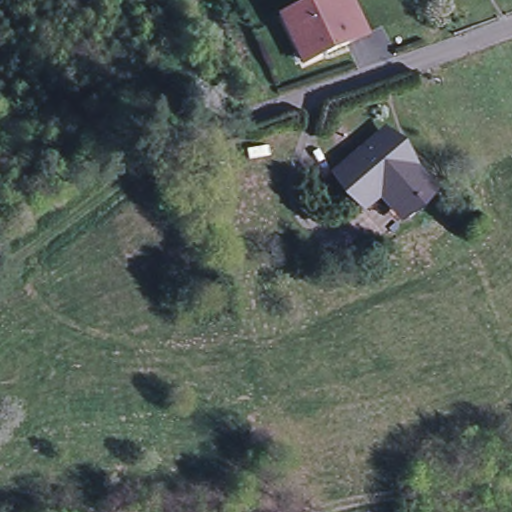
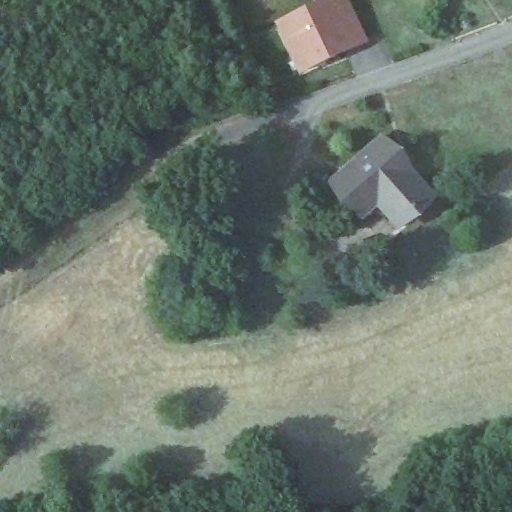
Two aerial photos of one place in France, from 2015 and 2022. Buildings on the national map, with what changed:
unchanged [(277,26),(313,8),(309,2),(314,0),(347,0),(368,44),(301,79),(277,26)]
unchanged [(434,196),(424,204),(403,221),(381,197),(364,210),(339,180),(389,141),(411,167),(434,196)]

